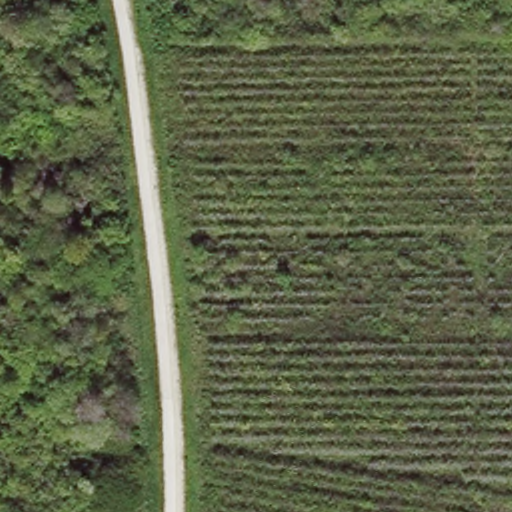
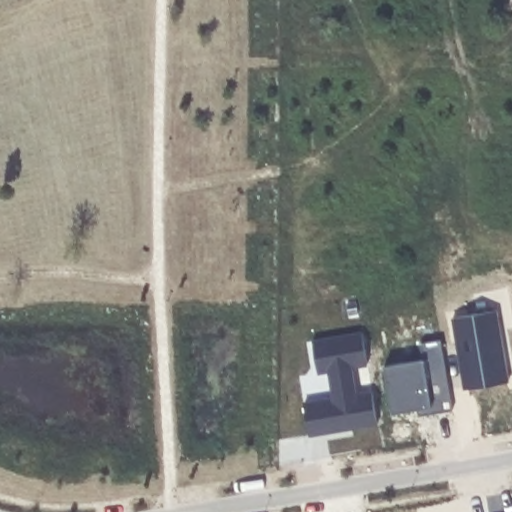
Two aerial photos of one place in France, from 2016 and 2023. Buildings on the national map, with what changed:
new [(495,311),(507,382),(463,390),(452,318),(495,311)]
new [(333,398),(328,372),(317,374),(312,342),(361,333),(367,365),(350,368),(355,395),(371,392),(377,425),(308,436),(303,404),(333,398)]
new [(416,410),(391,414),(383,366),(422,360),(420,344),(440,340),(452,411),(431,414),(417,417),(416,410)]

